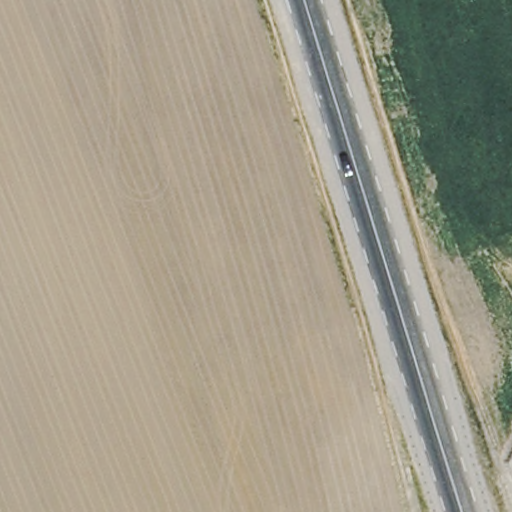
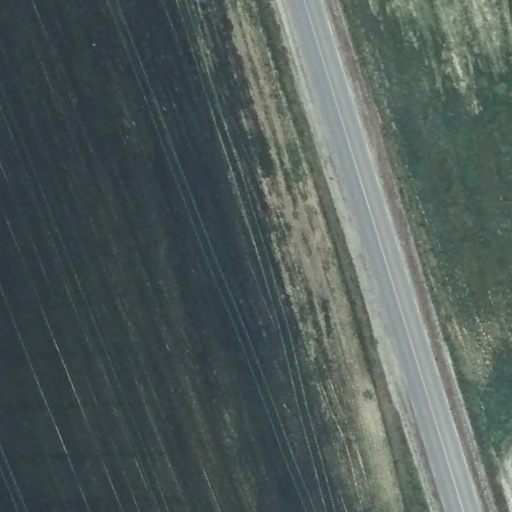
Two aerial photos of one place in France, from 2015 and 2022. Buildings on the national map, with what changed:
[]

